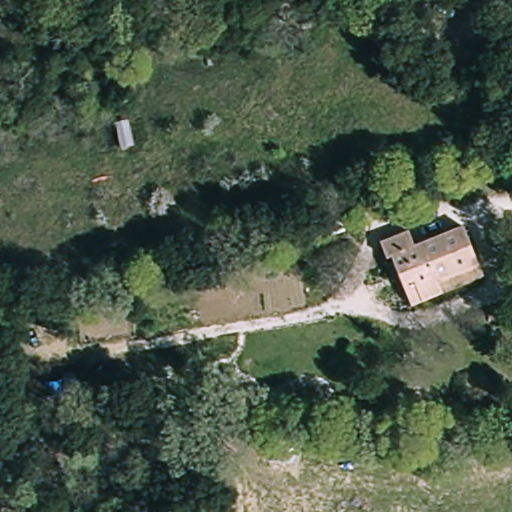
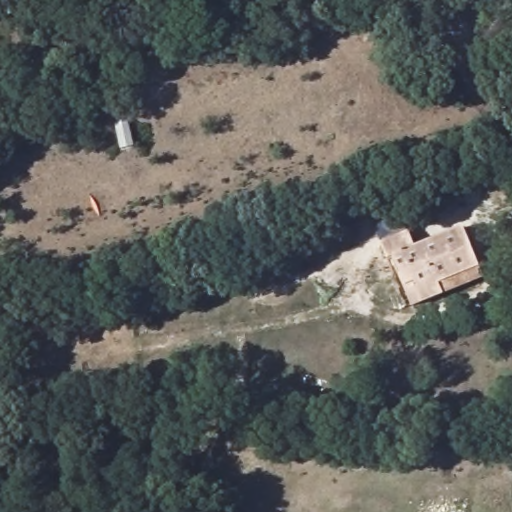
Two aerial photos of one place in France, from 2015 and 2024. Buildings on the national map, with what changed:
unchanged [(400,292),(389,261),(382,260),(378,246),(405,236),(409,247),(458,229),(472,265),(477,277),(439,291),(416,300),(405,304),(400,292)]

